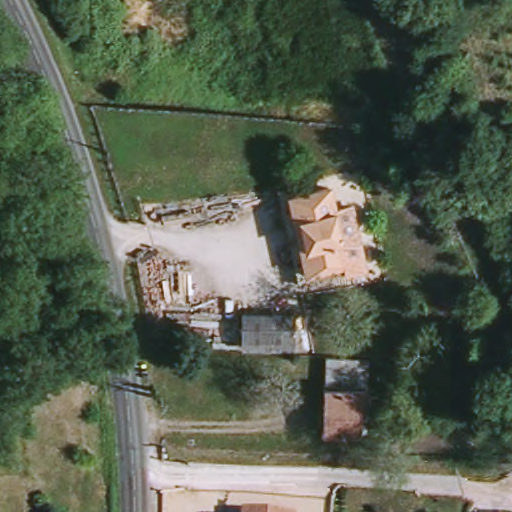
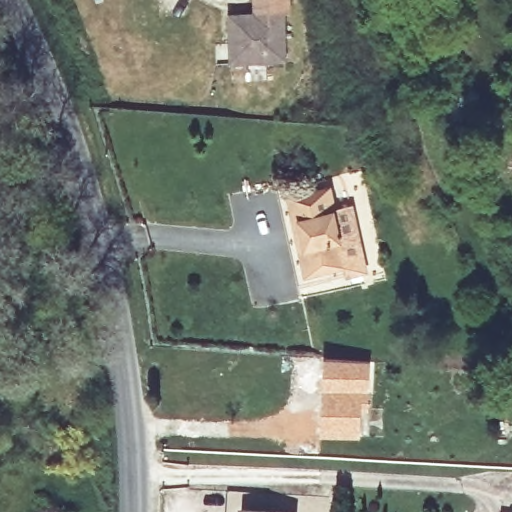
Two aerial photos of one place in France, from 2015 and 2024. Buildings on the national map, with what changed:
new [(286,12),(287,64),(230,65),(229,14),(286,12)]
unchanged [(310,179),(337,173),(360,270),(335,276),(310,179)]
unchanged [(335,276),(300,284),(278,186),(310,179),(335,276)]
unchanged [(287,322),(286,350),(245,347),(245,321),(287,322)]
unchanged [(360,392),(323,388),(326,362),(360,364),(363,365),(360,392)]
unchanged [(360,392),(358,436),(321,433),(323,388),(360,392)]
unchanged [(162,415),(155,415),(154,403),(161,402),(162,415)]
unchanged [(246,511),(267,512),(246,512),(246,511)]

